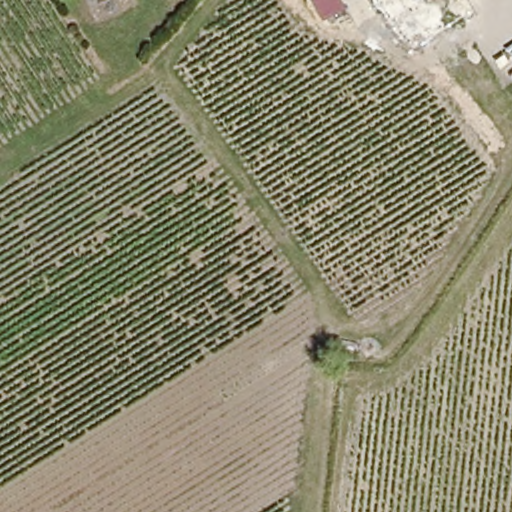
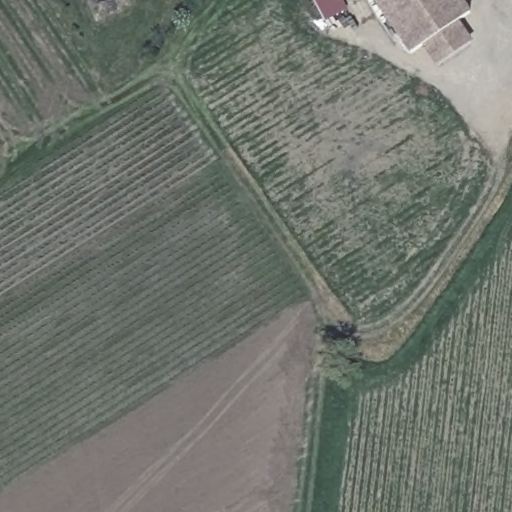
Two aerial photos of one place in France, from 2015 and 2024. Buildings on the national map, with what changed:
new [(347,9),(325,21),(313,0),(342,0),(347,9)]
new [(470,13),(460,19),(474,41),(437,65),(422,45),(411,53),(374,0),(462,0),(470,13)]

